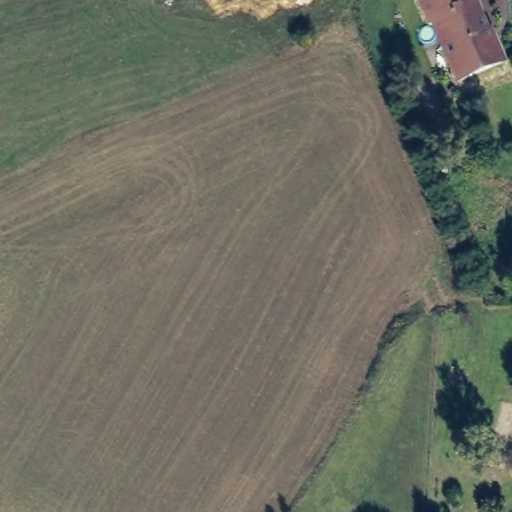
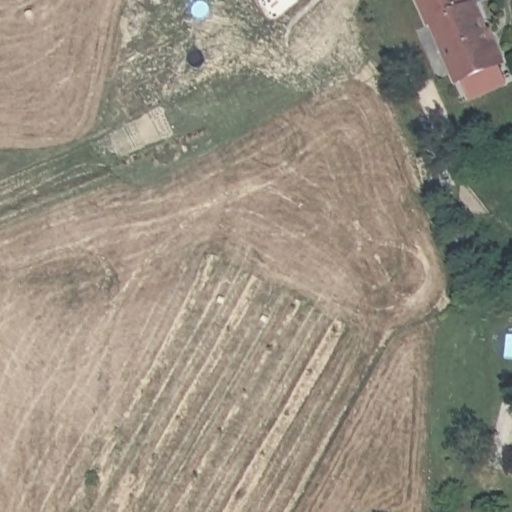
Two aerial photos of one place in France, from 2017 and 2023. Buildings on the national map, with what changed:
unchanged [(472,7),(477,6),(493,47),(496,47),(505,63),(458,85),(440,40),(432,27),(421,2),(425,0),(469,0),(472,7)]

